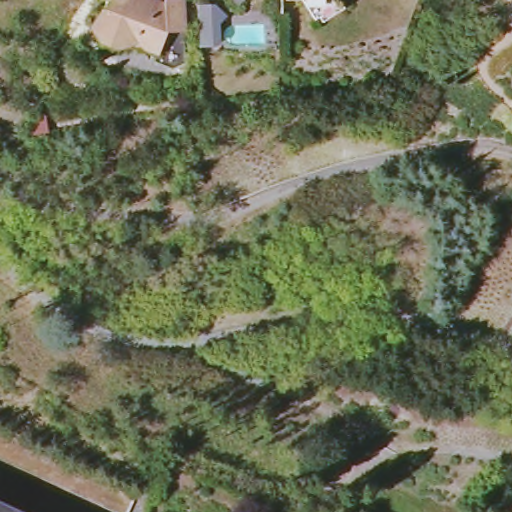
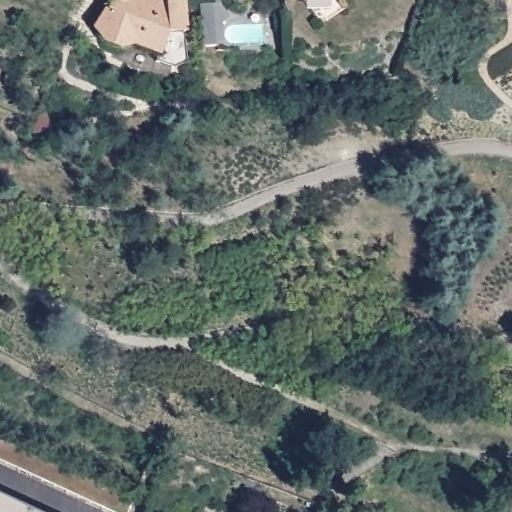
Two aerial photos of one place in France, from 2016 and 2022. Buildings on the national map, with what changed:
unchanged [(185,59),(172,59),(154,52),(157,44),(132,35),(118,37),(103,34),(94,22),(104,4),(105,0),(182,0),(185,59)]
unchanged [(334,6),(313,18),(301,0),(331,0),(334,6)]
unchanged [(202,11),(202,2),(217,2),(229,13),(222,21),(222,38),(217,44),(203,45),(202,11)]
unchanged [(131,512),(119,512),(0,457),(0,424),(141,489),(131,512)]
unchanged [(0,512),(0,501),(24,512),(0,512)]

